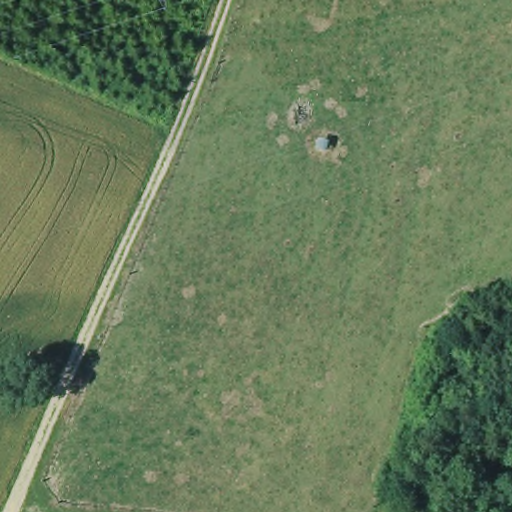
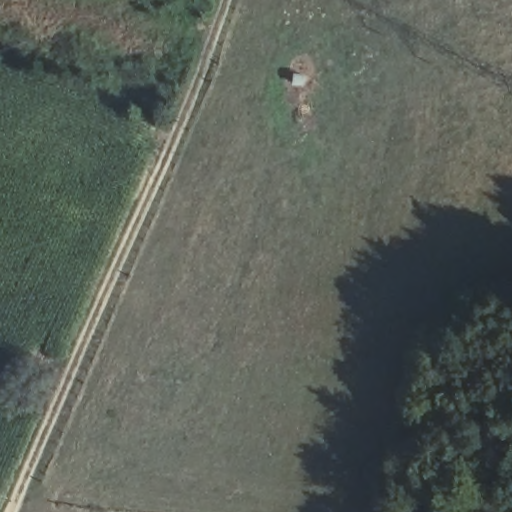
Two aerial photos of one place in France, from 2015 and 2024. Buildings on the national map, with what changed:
[]

